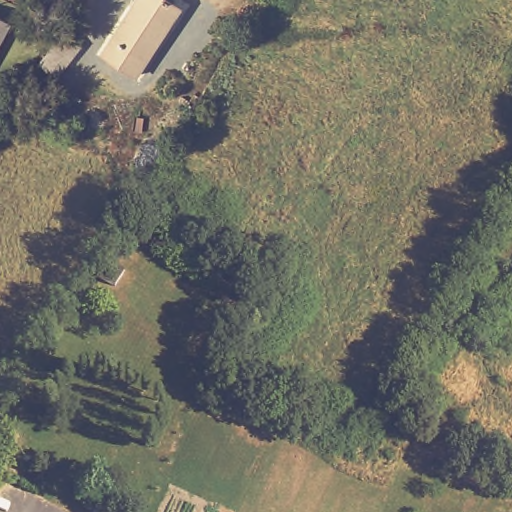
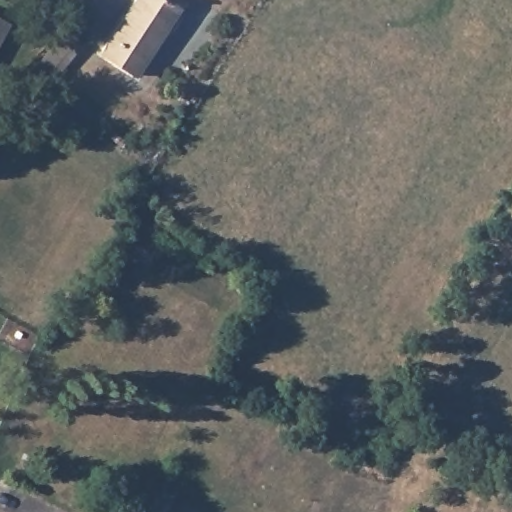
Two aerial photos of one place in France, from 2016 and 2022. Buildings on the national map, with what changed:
unchanged [(104,57),(151,0),(162,0),(188,20),(138,83),(104,57)]
unchanged [(0,48),(0,24),(10,29),(0,48)]
unchanged [(110,512),(100,512),(101,508),(110,512)]

